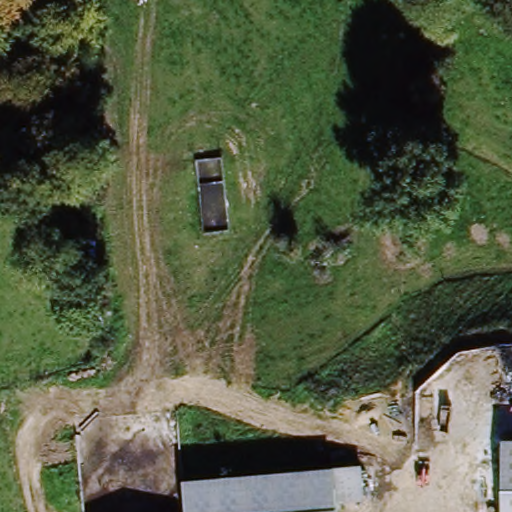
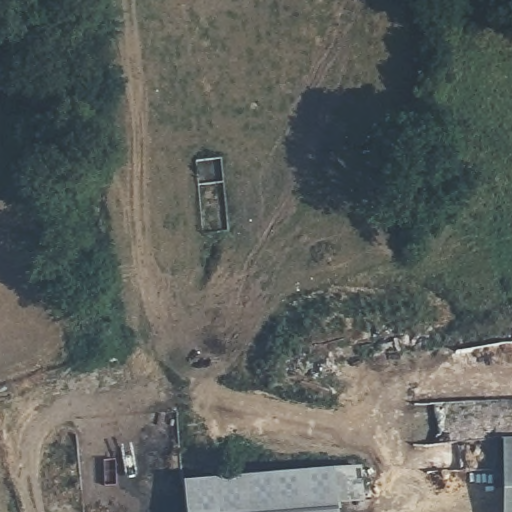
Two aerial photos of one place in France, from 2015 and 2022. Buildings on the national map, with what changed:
unchanged [(512,512),(501,512),(499,440),(512,440),(512,512)]
unchanged [(331,472),(356,468),(357,503),(332,505),(333,512),(182,512),(181,485),(331,472)]

